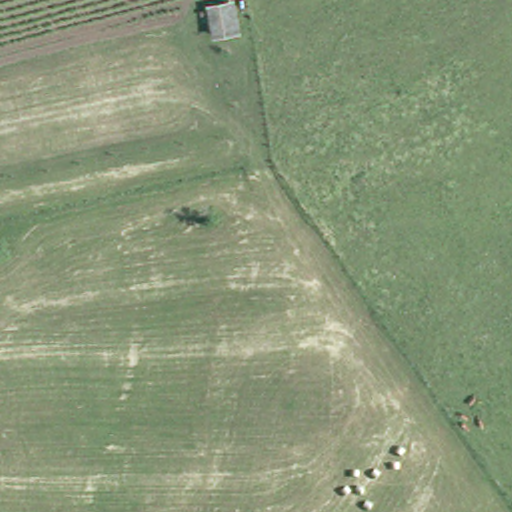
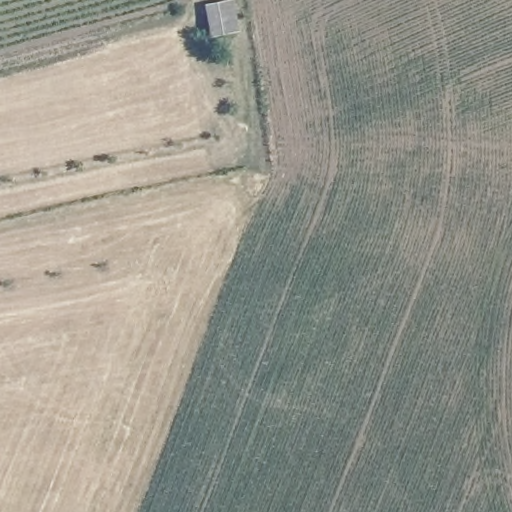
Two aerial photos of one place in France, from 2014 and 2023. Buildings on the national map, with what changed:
unchanged [(203,1),(211,0),(244,0),(250,26),(215,38),(203,1)]

